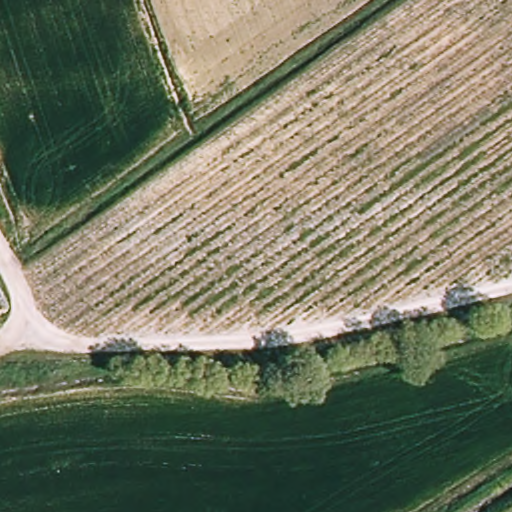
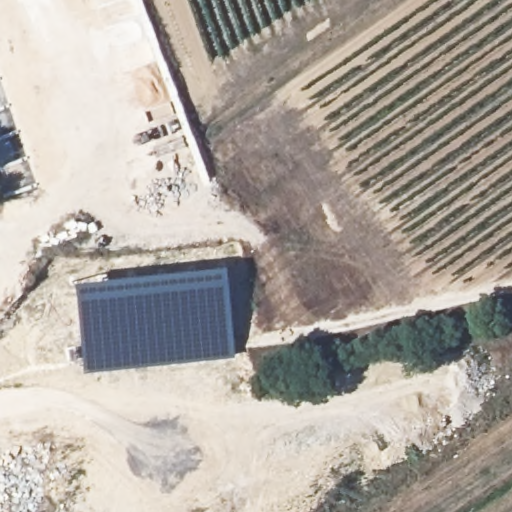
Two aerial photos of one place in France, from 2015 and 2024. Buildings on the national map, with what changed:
new [(83,373),(73,281),(223,264),(233,356),(83,373)]

